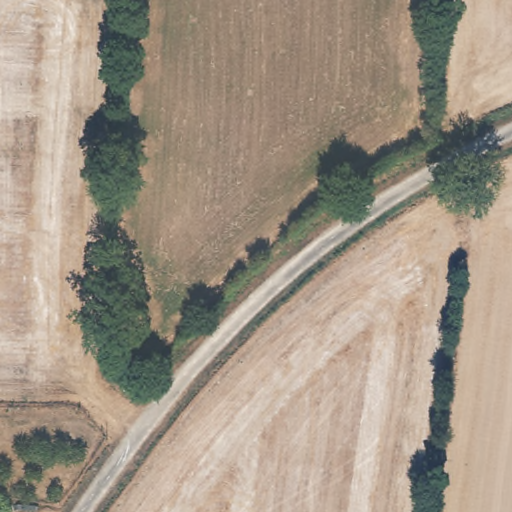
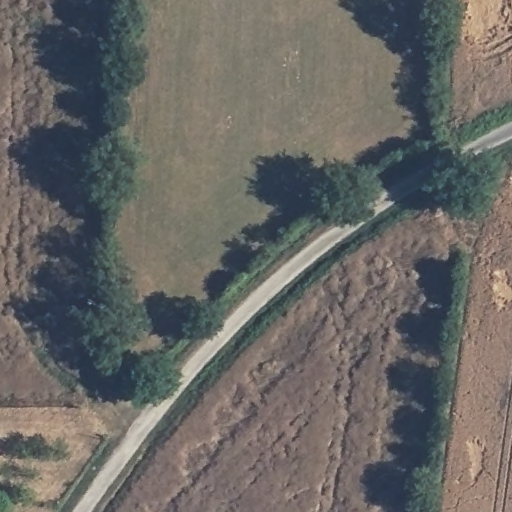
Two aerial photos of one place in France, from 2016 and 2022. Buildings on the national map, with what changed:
[]

